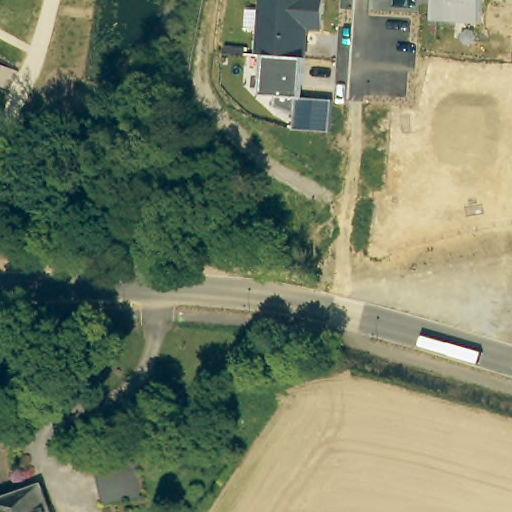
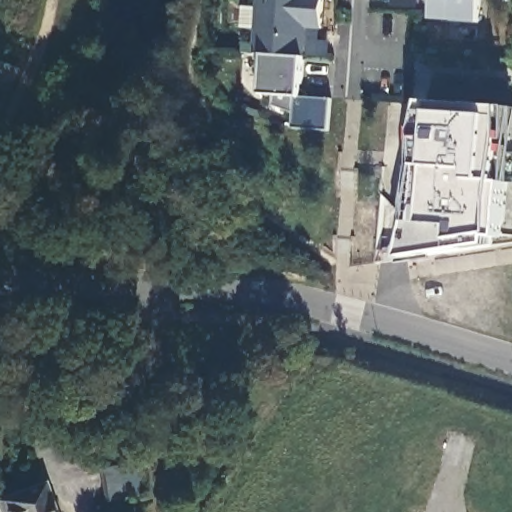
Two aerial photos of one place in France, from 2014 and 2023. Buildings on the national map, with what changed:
unchanged [(293,129),(295,113),(276,106),(281,94),(263,94),(266,55),(257,54),(260,0),(324,0),(322,30),(308,30),(307,58),(303,58),(302,97),(330,100),(329,132),(293,129)]
unchanged [(478,24),(432,20),(433,0),(480,0),(478,24)]
new [(505,138),(501,182),(507,184),(502,238),(493,237),(492,246),(408,259),(421,225),(431,225),(437,168),(435,168),(425,167),(422,132),(428,102),(506,108),(505,138)]
new [(507,108),(512,108),(512,133),(508,152),(508,182),(502,182),(507,108)]
unchanged [(135,463),(141,494),(105,501),(99,470),(117,466),(135,463)]
unchanged [(31,479),(42,509),(43,512),(0,512),(0,491),(25,481),(31,479)]

